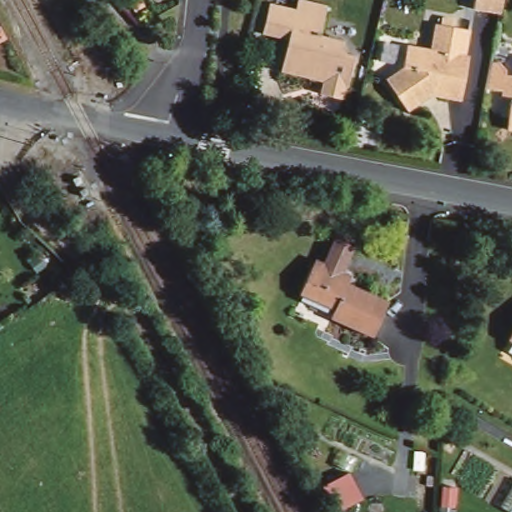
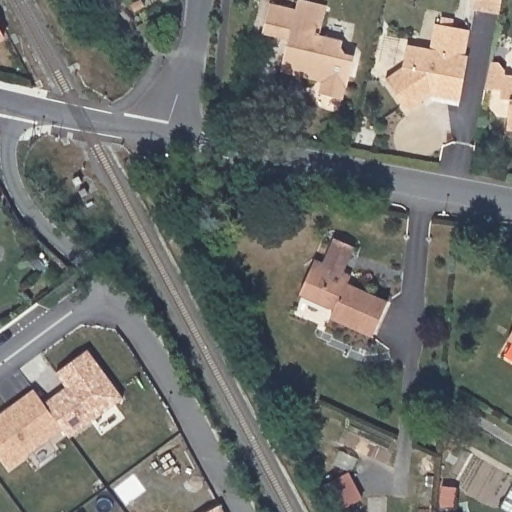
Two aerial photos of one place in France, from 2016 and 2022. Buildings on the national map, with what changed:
unchanged [(472,7),(473,0),(501,0),(498,12),(472,7)]
unchanged [(320,95),(322,84),(280,74),(288,44),(263,37),(270,5),(296,11),(298,3),(324,9),(317,38),(339,43),(336,55),(351,59),(341,100),(320,95)]
unchanged [(385,79),(402,67),(406,45),(430,49),(435,24),(440,25),(441,17),(453,20),(452,26),(469,30),(463,55),(467,56),(459,100),(430,95),(406,111),(385,79)]
unchanged [(5,37),(0,40),(0,28),(5,37)]
unchanged [(500,99),(503,75),(512,76),(512,130),(506,130),(509,100),(500,99)]
unchanged [(308,270),(318,270),(337,278),(343,286),(384,305),(369,337),(328,318),(330,314),(295,298),(308,270)]
unchanged [(512,330),(512,344),(506,340),(512,330)]
new [(124,399),(68,438),(62,430),(9,470),(0,457),(0,414),(32,390),(42,402),(65,388),(56,374),(88,350),(124,399)]
new [(208,512),(220,505),(223,512),(208,512)]

